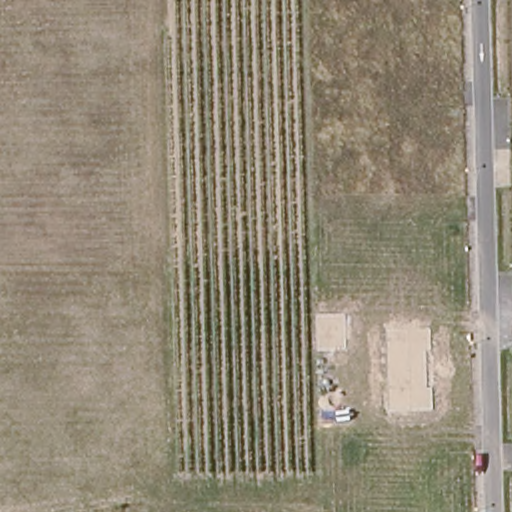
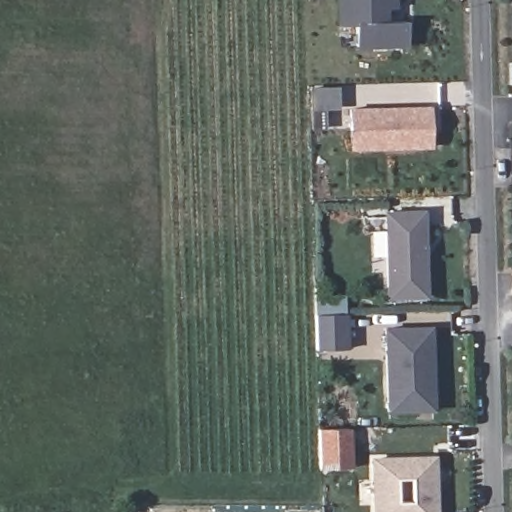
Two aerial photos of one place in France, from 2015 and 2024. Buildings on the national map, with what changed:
new [(386,11),(386,22),(407,21),(408,46),(357,48),(356,27),(339,28),(338,0),(394,0),(395,10),(386,11)]
new [(431,146),(351,148),(352,108),(430,106),(431,146)]
new [(427,298),(387,299),(385,210),(425,210),(427,298)]
unchanged [(345,349),(317,349),(317,314),(344,314),(345,349)]
unchanged [(427,350),(427,387),(432,387),(433,410),(388,412),(387,329),(431,328),(431,350),(427,350)]
new [(318,428),(351,428),(352,468),(320,468),(318,428)]
new [(370,456),(437,454),(438,512),(372,512),(370,456)]

